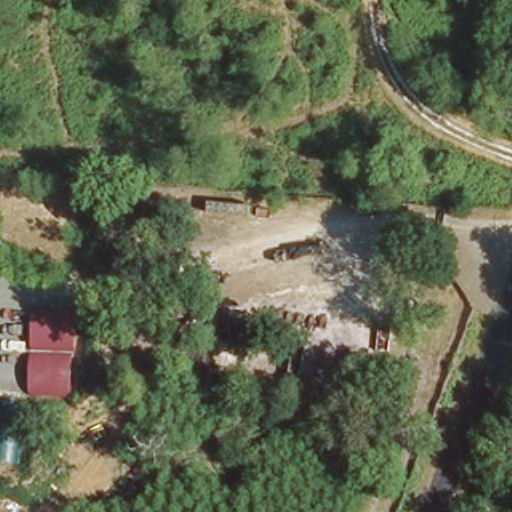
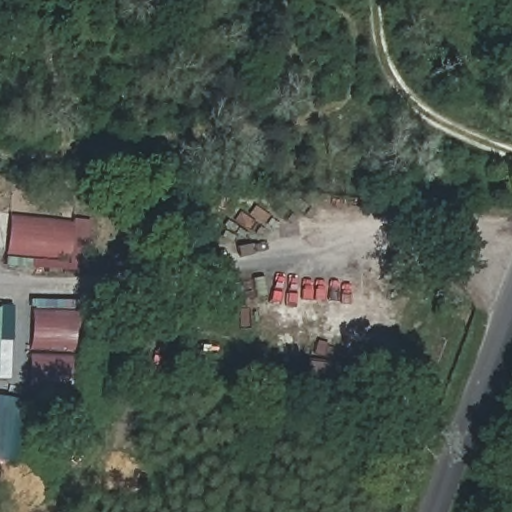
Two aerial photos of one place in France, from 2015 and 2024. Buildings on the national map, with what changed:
new [(0,254),(0,211),(90,222),(86,264),(0,254)]
unchanged [(70,397),(27,395),(32,307),(72,309),(70,397)]
unchanged [(0,397),(29,401),(19,463),(0,461),(0,397)]

